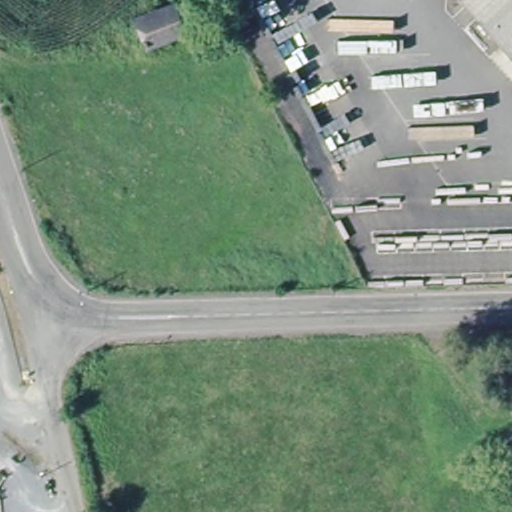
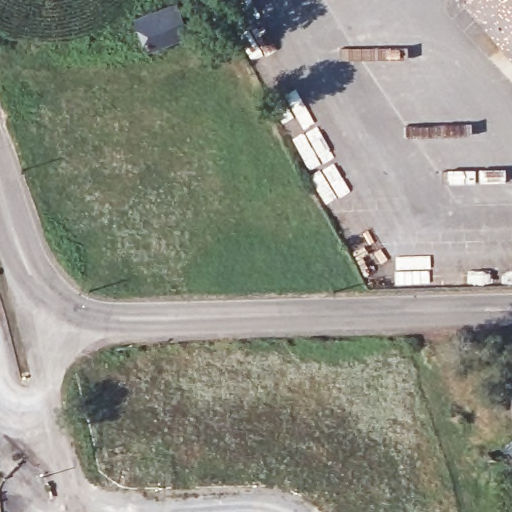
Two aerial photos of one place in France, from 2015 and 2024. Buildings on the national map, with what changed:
unchanged [(460,3),(463,0),(512,0),(512,58),(460,3)]
unchanged [(147,49),(134,18),(177,3),(190,33),(147,49)]
unchanged [(492,398),(512,378),(512,418),(492,398)]
unchanged [(483,461),(512,434),(512,489),(483,461)]

